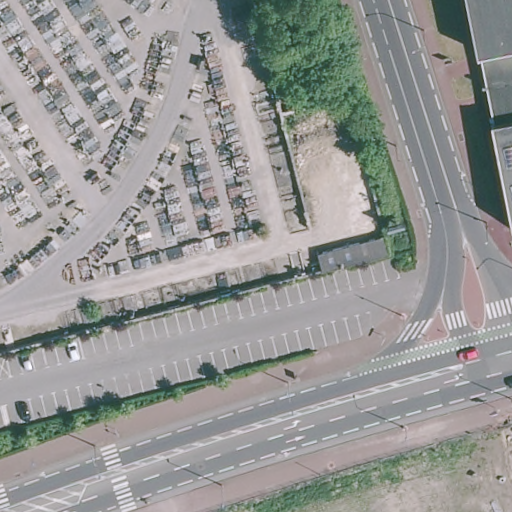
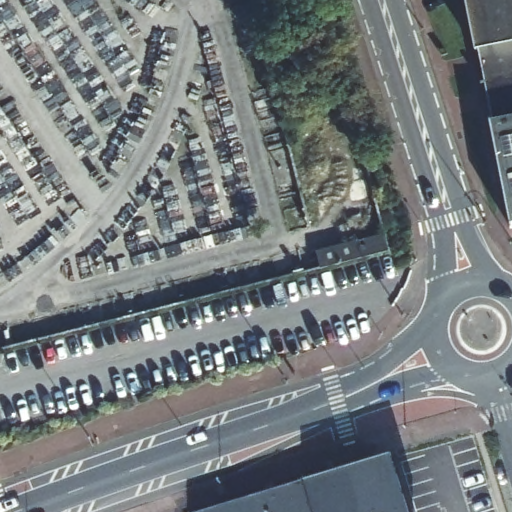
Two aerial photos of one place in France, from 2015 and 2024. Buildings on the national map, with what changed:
unchanged [(477,46),(474,47),(465,0),(512,0),(512,220),(510,221),(489,119),(492,117),(489,103),(477,46)]
new [(384,232),(389,250),(321,268),(317,250),(384,232)]
new [(408,512),(197,512),(304,479),(392,453),(408,512)]
demolished [(407,481),(456,493),(452,512),(400,512),(407,481)]

